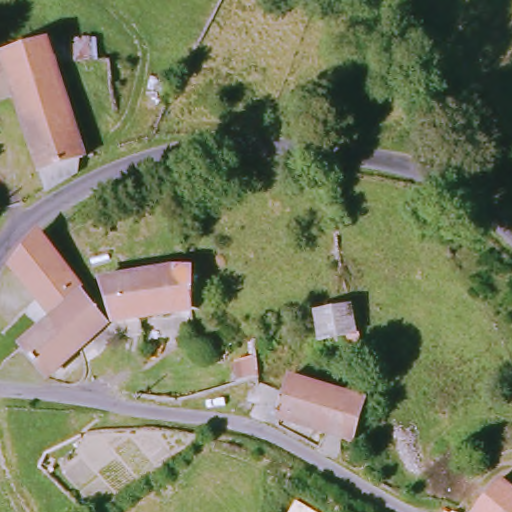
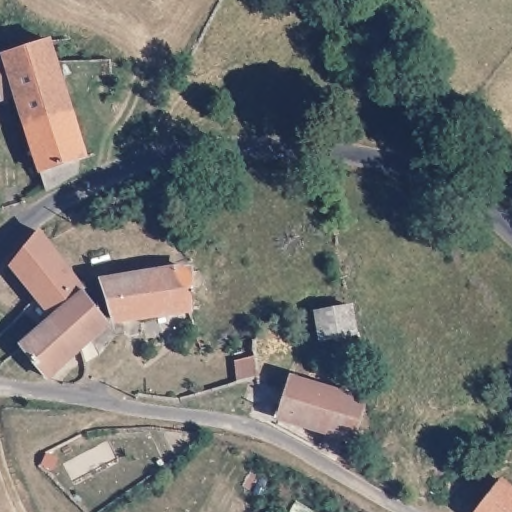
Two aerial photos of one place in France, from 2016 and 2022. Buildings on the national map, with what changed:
unchanged [(95,61),(56,68),(85,157),(75,177),(42,194),(33,172),(12,107),(0,108),(0,55),(48,41),(93,41),(95,61)]
unchanged [(78,291),(45,319),(3,267),(35,230),(78,291)]
unchanged [(184,271),(185,312),(107,321),(97,283),(155,272),(180,271),(184,271)]
unchanged [(103,324),(40,378),(13,347),(45,319),(78,291),(103,324)]
unchanged [(352,332),(316,337),(312,312),(347,306),(352,332)]
unchanged [(353,437),(278,415),(290,376),(362,399),(353,437)]
unchanged [(512,497),(512,512),(467,512),(492,481),(512,497)]

